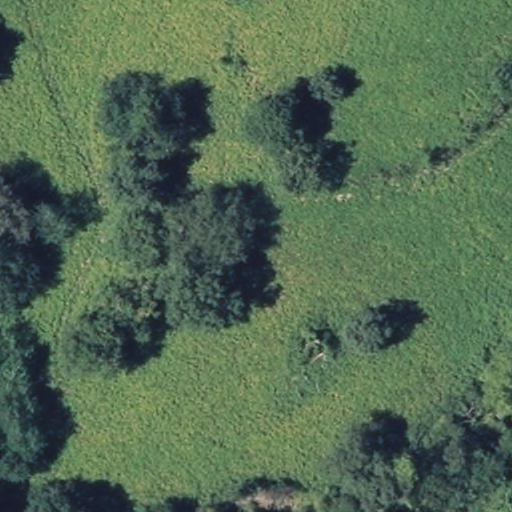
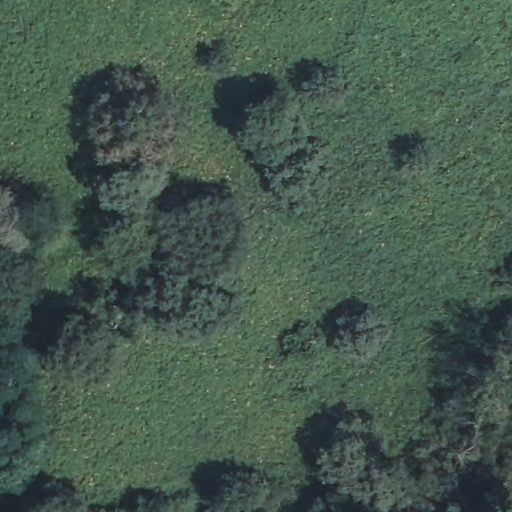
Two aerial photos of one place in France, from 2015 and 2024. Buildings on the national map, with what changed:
unchanged [(310,470),(329,460),(342,483),(331,489),(314,495),(310,470)]

